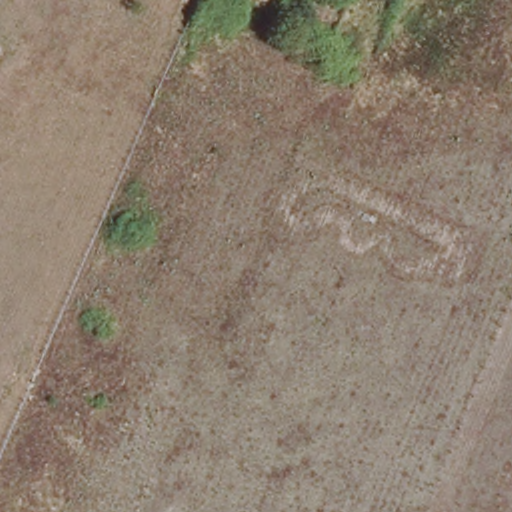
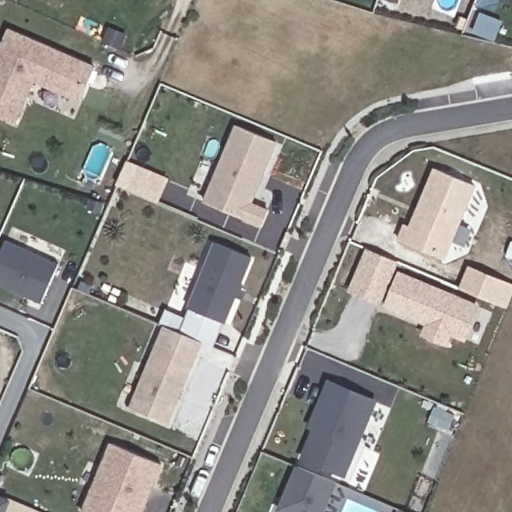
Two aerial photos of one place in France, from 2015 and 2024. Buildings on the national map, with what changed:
new [(80,102),(35,82),(17,125),(0,117),(0,47),(8,27),(96,65),(80,102)]
new [(249,205),(267,212),(261,227),(204,204),(236,127),(275,144),(262,175),(257,187),(249,205)]
new [(170,179),(159,203),(116,185),(126,160),(170,179)]
new [(430,254),(403,244),(409,228),(415,230),(436,175),(468,186),(445,244),(440,257),(430,254)]
new [(5,243),(58,266),(40,305),(0,288),(0,254),(5,243)]
new [(215,245),(250,259),(223,325),(213,347),(201,342),(167,425),(130,409),(164,327),(159,325),(165,311),(184,318),(187,310),(215,245)]
new [(366,250),(394,262),(386,280),(376,303),(348,292),(358,269),(366,250)]
new [(459,288),(469,265),(512,283),(512,294),(506,308),(459,288)]
new [(400,275),(479,307),(465,340),(448,333),(444,343),(425,335),(429,325),(387,307),(400,275)]
new [(313,420),(320,401),(328,382),(373,401),(343,475),(302,458),(317,421),(313,420)]
new [(145,512),(81,512),(108,445),(163,468),(154,489),(150,500),(145,512)]
new [(294,510),(287,506),(282,505),(284,500),(297,469),(334,484),(322,512),(293,512),(294,510)]
new [(4,480),(0,489),(0,477),(4,480)]
new [(7,500),(2,512),(0,512),(0,497),(7,500)]

